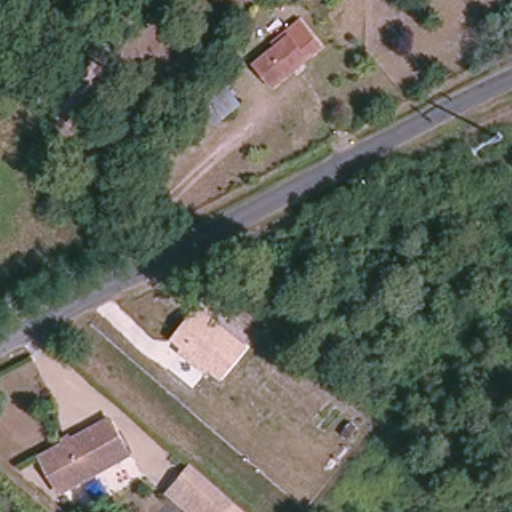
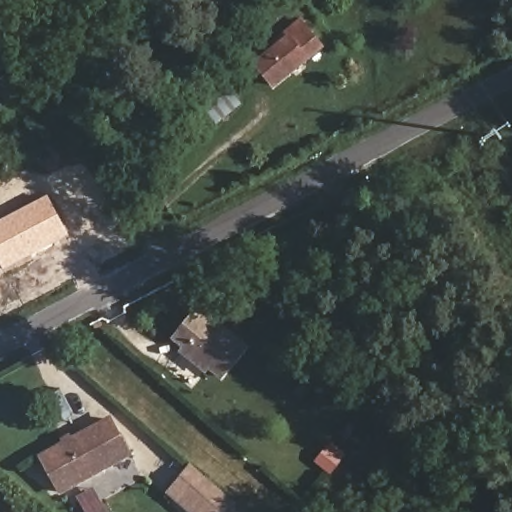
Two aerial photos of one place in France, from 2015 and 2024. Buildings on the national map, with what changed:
unchanged [(273,82),(256,61),(291,32),(305,20),(313,32),(324,46),(273,82)]
unchanged [(198,106),(229,82),(244,105),(212,129),(198,106)]
new [(49,195),(70,236),(3,270),(0,264),(0,221),(49,195)]
unchanged [(206,373),(180,352),(182,347),(172,338),(199,307),(249,346),(221,381),(209,371),(206,373)]
unchanged [(105,418),(126,454),(56,491),(39,453),(105,418)]
unchanged [(241,512),(216,512),(176,477),(187,465),(241,512)]
unchanged [(216,512),(184,512),(163,493),(176,477),(216,512)]

